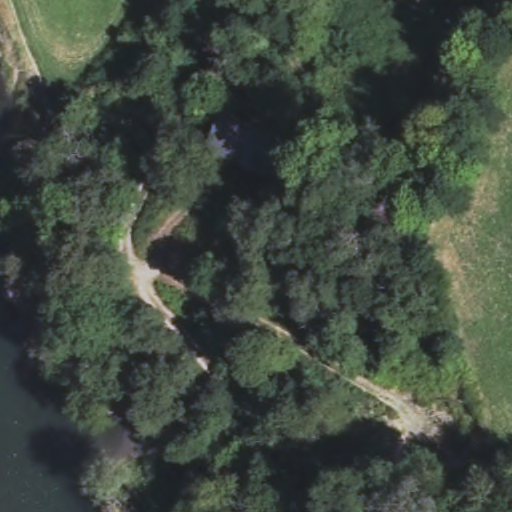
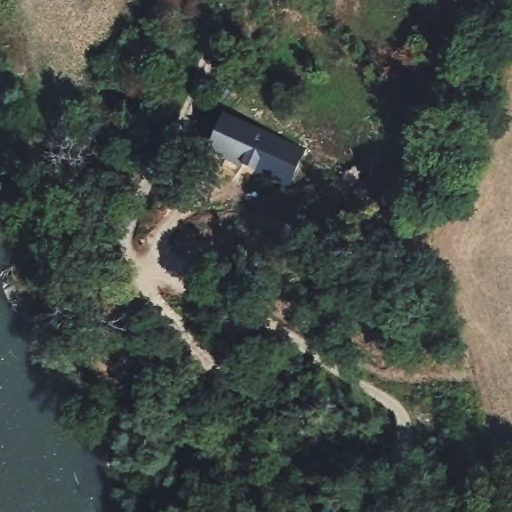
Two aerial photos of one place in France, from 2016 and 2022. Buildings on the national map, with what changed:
demolished [(302,147),(288,187),(210,158),(216,141),(225,117),(302,147)]
new [(220,129),(301,141),(295,178),(214,169),(220,129)]

